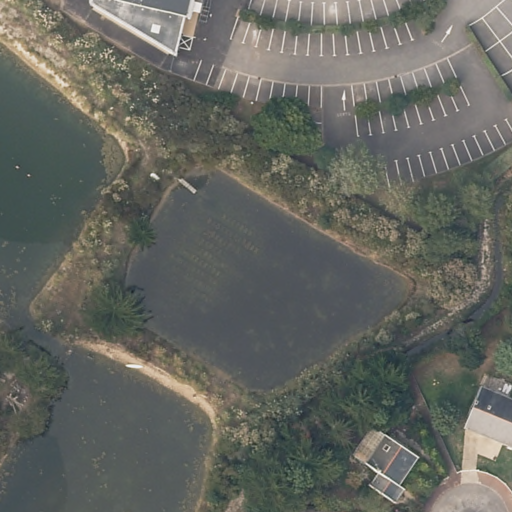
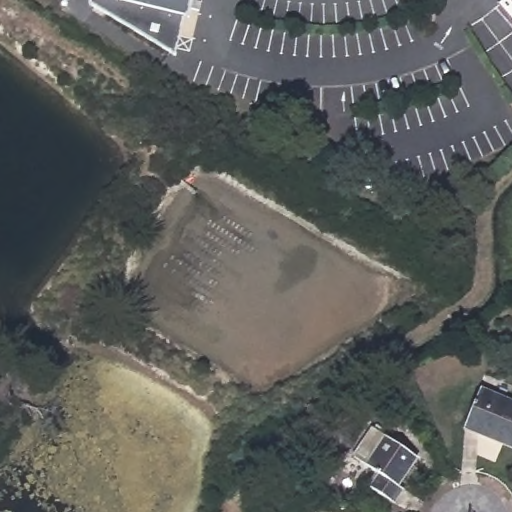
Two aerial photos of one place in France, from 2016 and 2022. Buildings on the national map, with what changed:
unchanged [(176,51),(91,4),(92,0),(191,0),(188,15),(176,51)]
unchanged [(512,402),(512,449),(463,429),(480,389),(512,402)]
unchanged [(415,458),(396,487),(401,490),(392,503),(368,487),(376,474),(352,458),(372,429),(415,458)]

